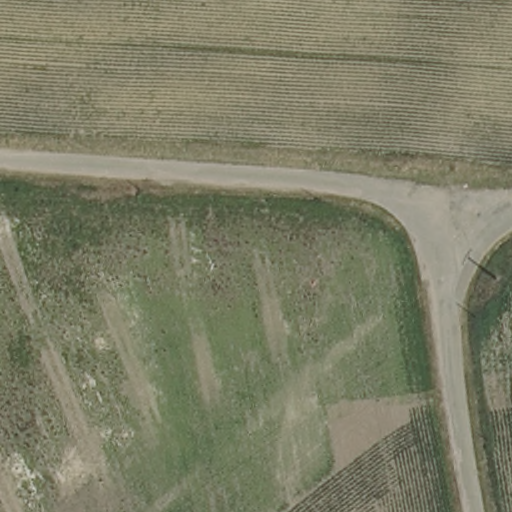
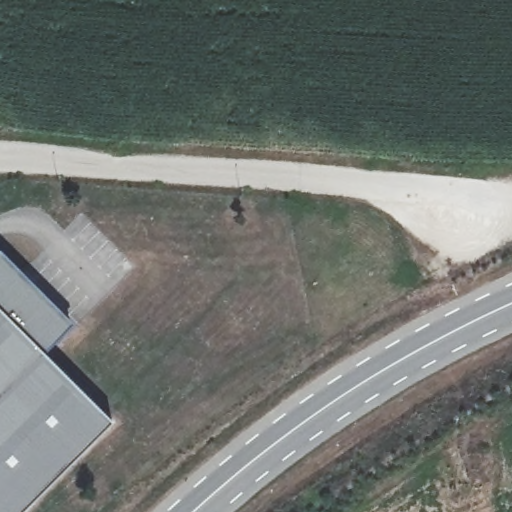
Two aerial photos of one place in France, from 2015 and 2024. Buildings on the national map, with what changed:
new [(0,512),(0,252),(72,324),(42,352),(111,422),(20,512),(0,512)]

